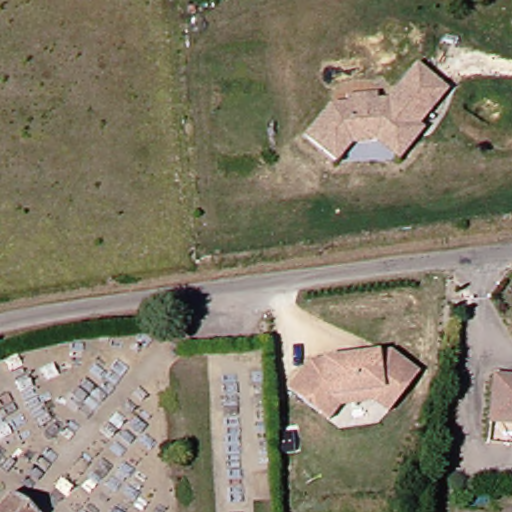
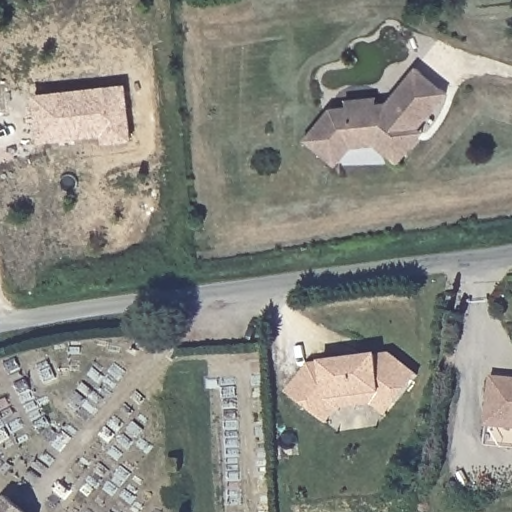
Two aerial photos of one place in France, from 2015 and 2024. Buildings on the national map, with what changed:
unchanged [(375,142),(352,144),(336,163),(305,138),(331,106),(347,104),(346,96),(376,93),(377,101),(388,100),(417,65),(448,91),(419,126),(423,130),(419,136),(405,153),(398,161),(375,142)]
new [(33,95),(126,85),(132,142),(102,145),(102,136),(38,143),(33,95)]
unchanged [(388,353),(416,374),(385,415),(370,403),(338,408),(327,422),(286,391),(308,363),(388,353)]
unchanged [(492,370),(512,372),(512,440),(485,438),(487,417),(492,370)]
unchanged [(11,497),(28,512),(0,512),(0,508),(11,497)]

